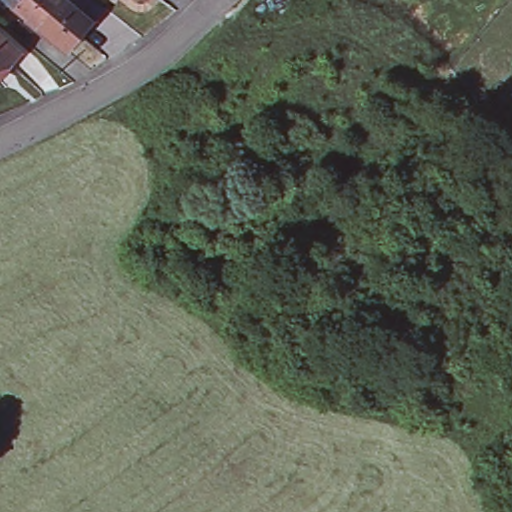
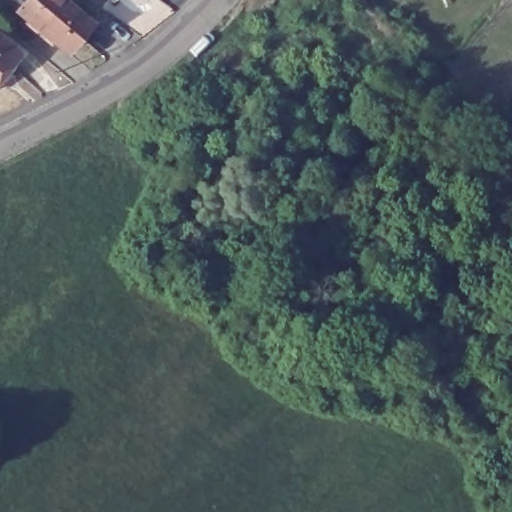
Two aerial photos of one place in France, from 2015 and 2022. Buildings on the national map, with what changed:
unchanged [(68,54),(18,13),(3,0),(61,0),(91,26),(68,54)]
unchanged [(0,74),(0,31),(21,50),(0,74)]

